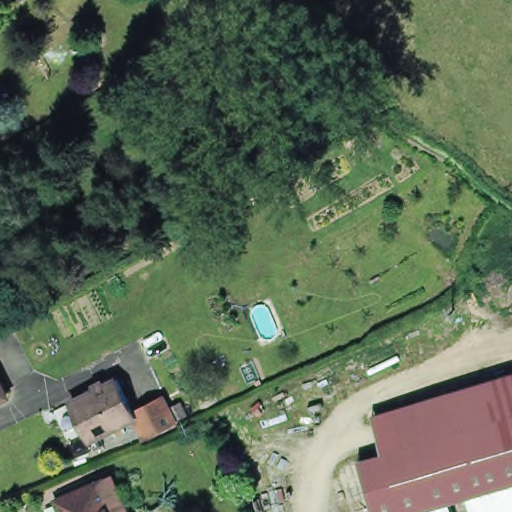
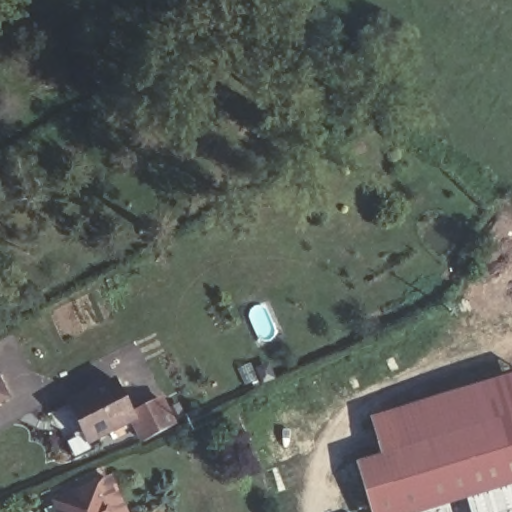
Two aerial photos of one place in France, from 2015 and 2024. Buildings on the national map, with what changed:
unchanged [(447,499),(408,512),(370,512),(357,452),(384,445),(370,408),(512,367),(512,480),(463,495),(447,499)]
unchanged [(168,425),(137,441),(127,419),(86,440),(67,402),(80,395),(89,391),(109,381),(126,415),(155,400),(168,425)]
unchanged [(93,482),(105,478),(117,509),(119,512),(57,512),(52,500),(93,482)]
unchanged [(512,512),(469,512),(463,495),(512,480),(512,512)]
unchanged [(452,512),(415,512),(449,502),(452,512)]

